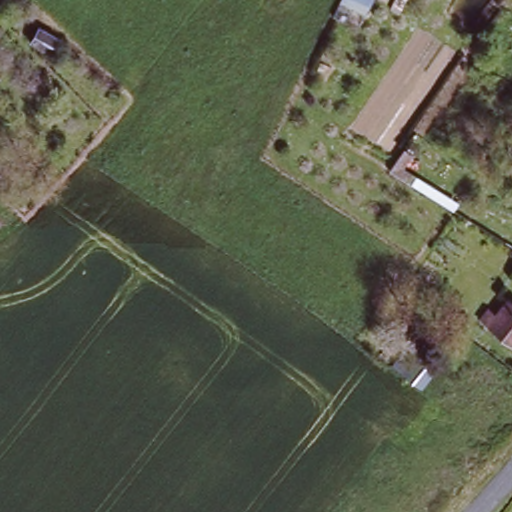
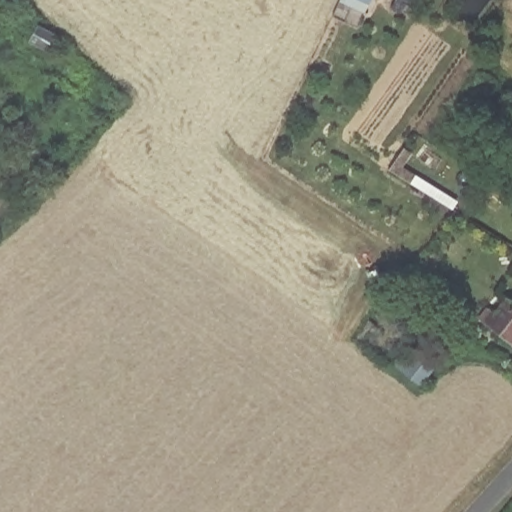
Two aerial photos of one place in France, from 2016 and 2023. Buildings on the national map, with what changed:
unchanged [(373,0),(370,9),(349,0),(373,0)]
unchanged [(50,31),(58,36),(51,51),(30,41),(36,26),(50,31)]
unchanged [(512,340),(480,319),(487,308),(495,311),(504,298),(512,299),(512,340)]
unchanged [(426,346),(444,359),(424,386),(396,363),(405,351),(415,359),(426,346)]

